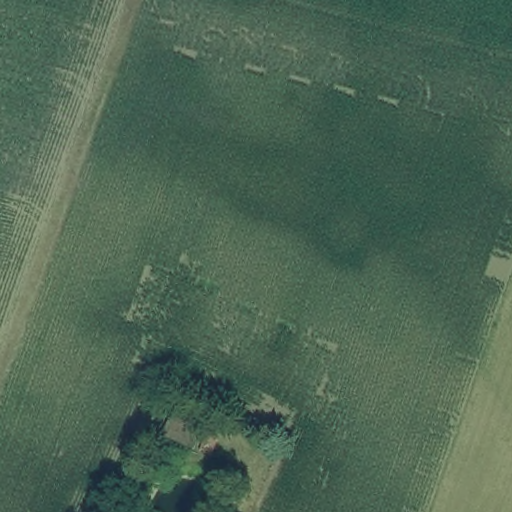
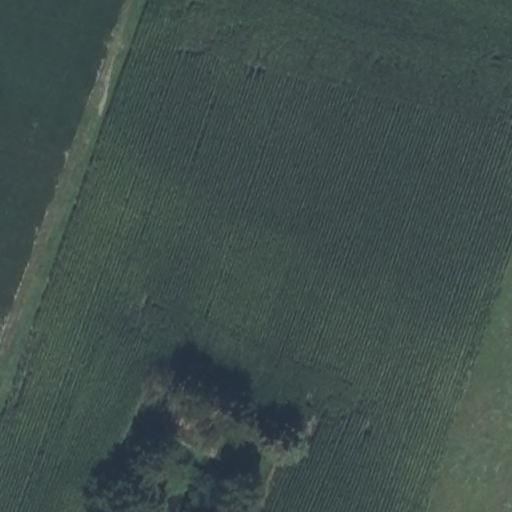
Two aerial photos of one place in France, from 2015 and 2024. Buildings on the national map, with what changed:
unchanged [(212,461),(163,437),(172,406),(225,428),(212,461)]

